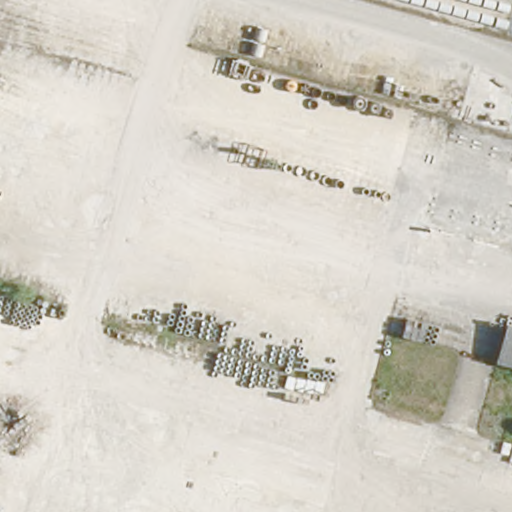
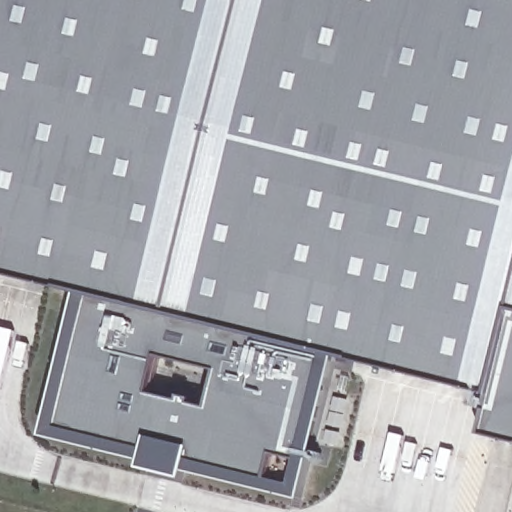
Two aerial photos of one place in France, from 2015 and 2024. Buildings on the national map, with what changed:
new [(483,433),(492,394),(329,353),(296,497),(190,468),(187,477),(145,468),(148,457),(49,434),(80,290),(0,271),(0,0),(512,0),(512,440),(483,433)]
demolished [(499,363),(510,322),(512,323),(512,367),(499,363)]

